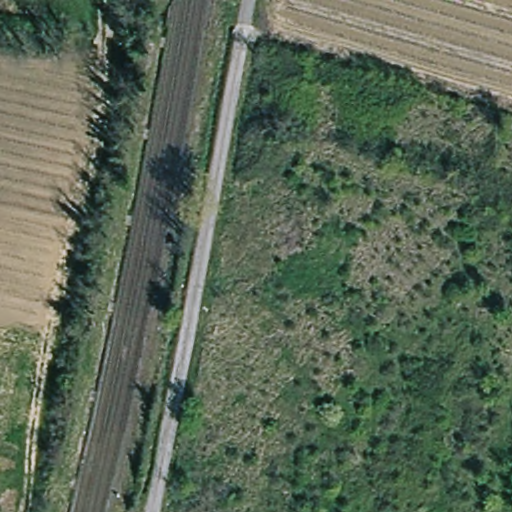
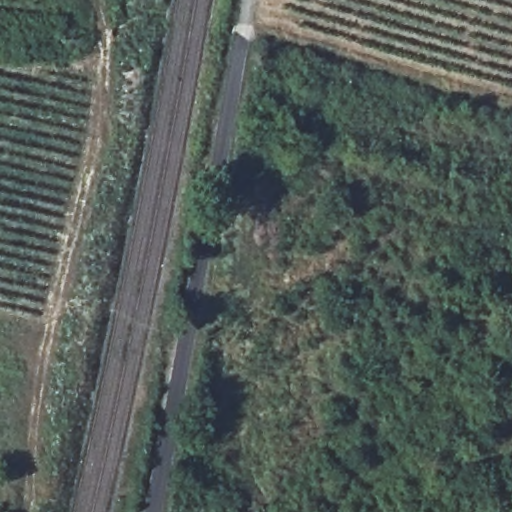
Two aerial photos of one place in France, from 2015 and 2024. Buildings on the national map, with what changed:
[]

